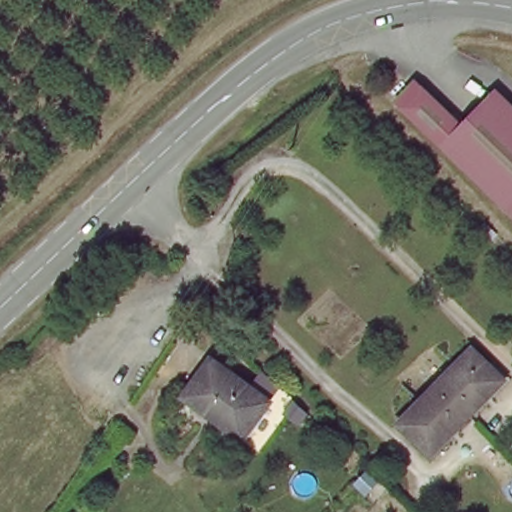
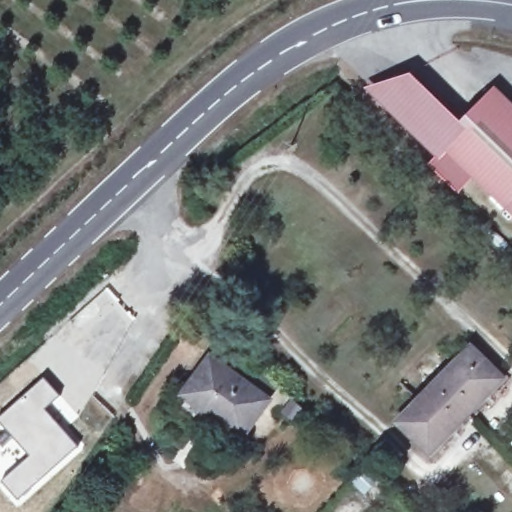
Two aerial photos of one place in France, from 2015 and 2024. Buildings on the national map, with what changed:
unchanged [(466,126),(499,94),(512,107),(512,214),(450,153),(391,96),(412,76),(466,126)]
unchanged [(502,376),(469,412),(432,450),(401,418),(438,381),(472,346),(502,376)]
unchanged [(264,399),(237,437),(178,394),(205,356),(264,399)]
new [(77,445),(20,500),(2,482),(30,456),(0,422),(0,418),(43,379),(60,395),(45,410),(77,445)]
new [(302,410),(295,420),(285,412),(293,402),(302,410)]

